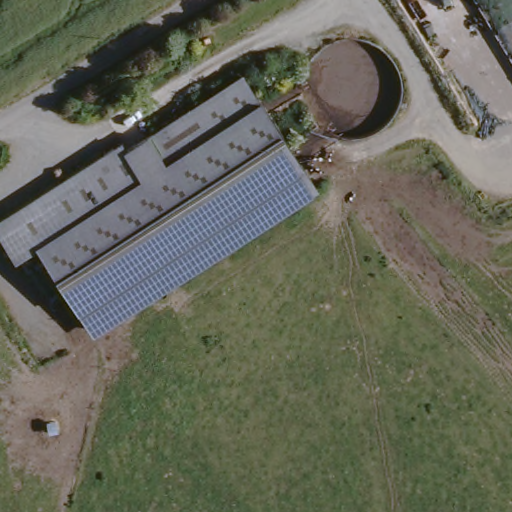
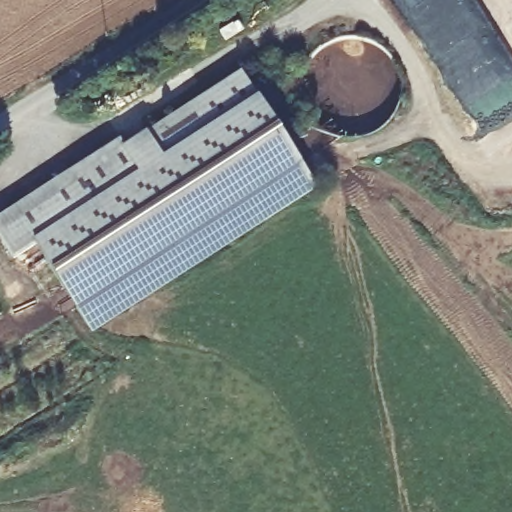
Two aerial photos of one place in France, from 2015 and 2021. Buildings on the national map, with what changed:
unchanged [(35,247),(142,178),(125,151),(241,76),(288,150),(312,186),(297,196),(89,330),(35,247)]
unchanged [(35,247),(13,261),(0,240),(0,221),(120,144),(125,151),(142,178),(35,247)]

